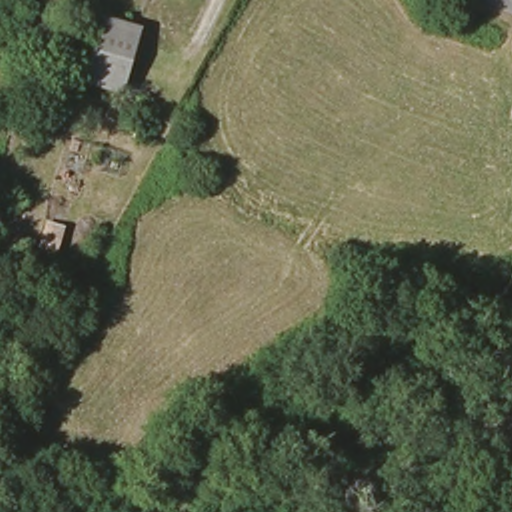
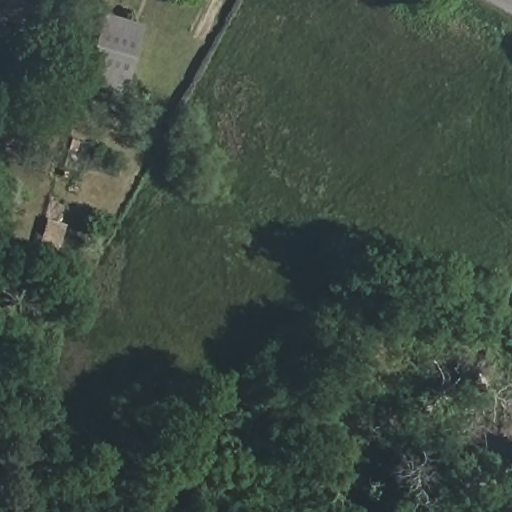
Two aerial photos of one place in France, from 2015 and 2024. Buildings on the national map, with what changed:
unchanged [(140,29),(122,89),(86,78),(103,18),(140,29)]
unchanged [(69,227),(58,257),(39,252),(48,221),(69,227)]

